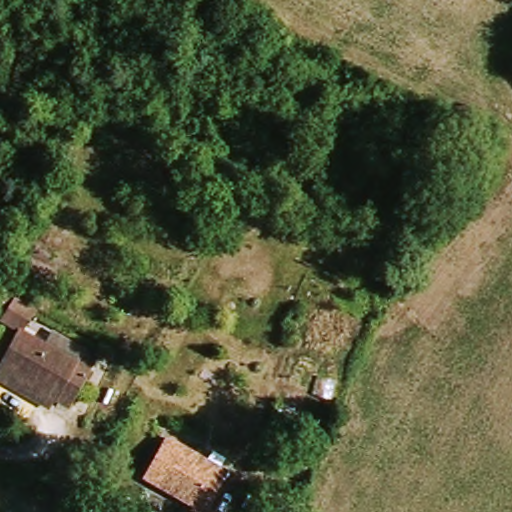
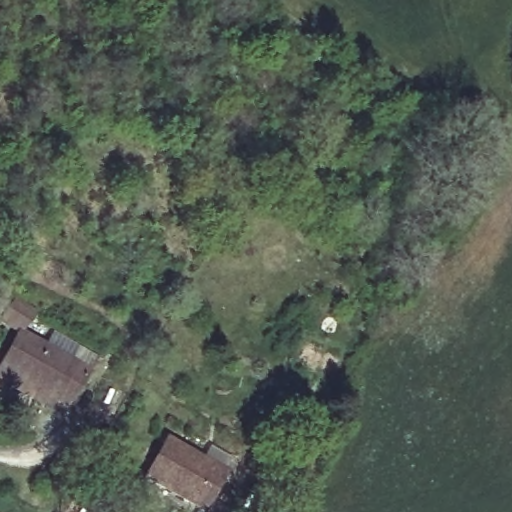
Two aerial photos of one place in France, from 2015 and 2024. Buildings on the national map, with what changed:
unchanged [(16,333),(0,325),(15,300),(38,313),(23,337),(88,371),(68,409),(51,401),(46,410),(0,386),(0,364),(16,333)]
unchanged [(203,512),(198,512),(144,484),(165,443),(223,473),(203,512)]

